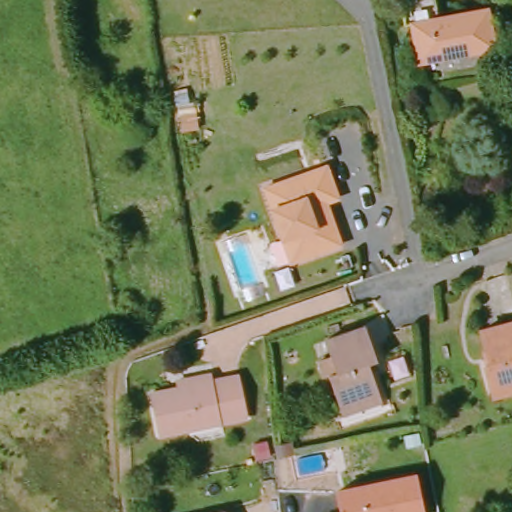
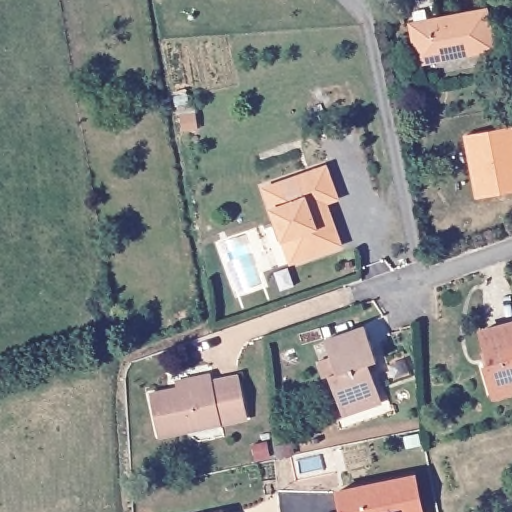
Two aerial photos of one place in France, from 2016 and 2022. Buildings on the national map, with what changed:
new [(412,24),(408,0),(435,0),(438,18),(412,24)]
unchanged [(478,10),(485,49),(415,63),(407,25),(478,10)]
new [(195,114),(198,129),(182,130),(180,116),(195,114)]
new [(512,126),(512,192),(477,198),(466,134),(512,126)]
unchanged [(286,237),(268,186),(330,164),(342,196),(330,200),(345,243),(305,257),(295,261),(286,237)]
unchanged [(488,396),(486,387),(481,365),(487,363),(479,331),(512,322),(512,380),(505,382),(507,391),(488,396)]
unchanged [(331,414),(328,403),(322,375),(315,377),(312,360),(320,357),(320,342),(364,331),(372,364),(365,366),(370,392),(373,405),(331,414)]
unchanged [(143,399),(233,379),(242,422),(152,442),(143,399)]
unchanged [(282,433),(283,447),(261,452),(260,438),(282,433)]
unchanged [(332,496),(409,480),(415,512),(334,512),(332,496)]

